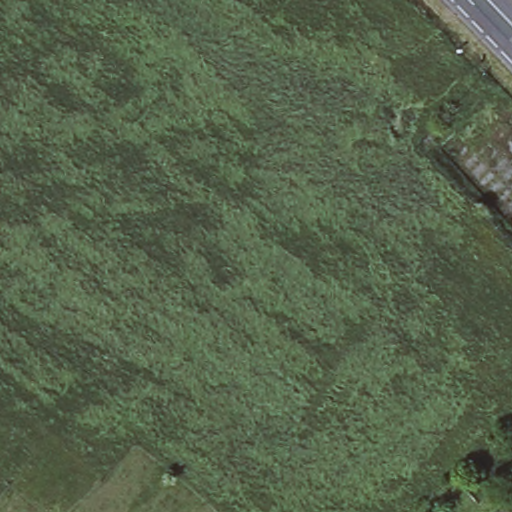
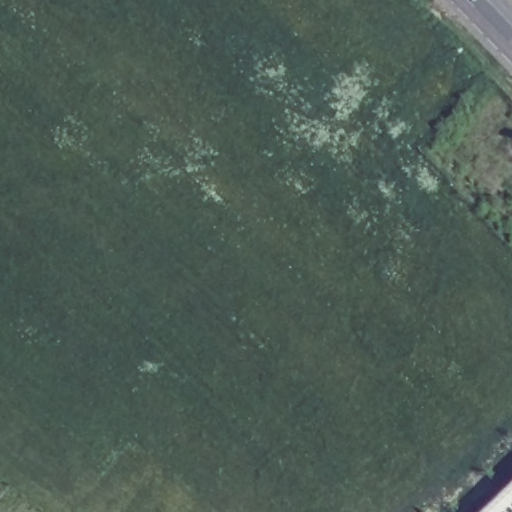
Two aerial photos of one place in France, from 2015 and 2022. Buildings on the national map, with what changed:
new [(512,485),(512,512),(483,512),(512,485)]
demolished [(503,512),(512,504),(512,512),(503,512)]

